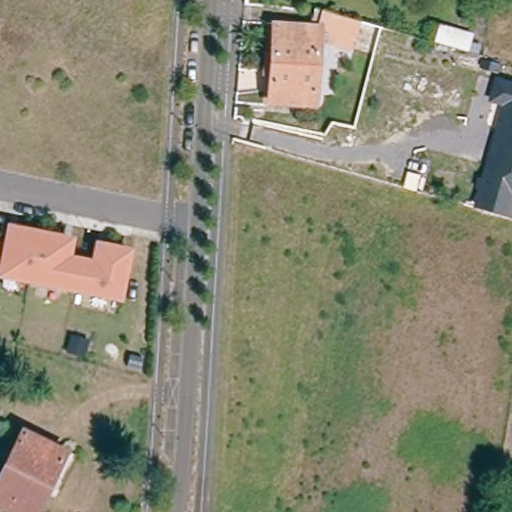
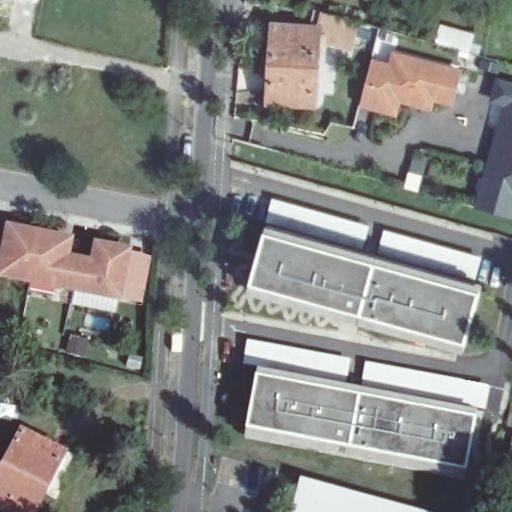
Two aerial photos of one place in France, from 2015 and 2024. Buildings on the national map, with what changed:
unchanged [(353,53),(345,51),(323,44),(323,41),(319,41),(315,98),(293,96),(292,108),(270,105),(275,30),(312,34),(317,14),(325,16),(361,26),(353,53)]
new [(440,23),(475,33),(468,54),(433,42),(440,23)]
new [(372,56),(387,60),(390,49),(461,69),(451,106),(435,101),(431,111),(401,104),(396,117),(358,106),(372,56)]
unchanged [(490,101),(496,77),(512,81),(512,218),(475,207),(503,105),(490,101)]
new [(412,154),(427,159),(417,192),(402,188),(412,154)]
demolished [(477,197),(471,196),(408,179),(415,156),(475,173),(483,174),(477,197)]
new [(370,227),(360,243),(270,216),(273,199),(370,227)]
new [(266,224),(482,283),(481,290),(265,231),(266,224)]
new [(380,244),(387,225),(475,259),(468,278),(380,244)]
new [(265,231),(481,290),(466,342),(250,284),(265,231)]
unchanged [(4,249),(6,235),(14,237),(15,232),(61,242),(60,247),(67,248),(65,262),(91,267),(94,254),(101,255),(102,250),(126,255),(116,305),(65,294),(0,281),(0,248),(4,249)]
new [(250,284),(466,342),(465,349),(249,290),(250,284)]
new [(258,370),(477,411),(475,418),(257,377),(258,370)]
new [(257,377),(475,418),(466,470),(247,429),(257,377)]
new [(247,429),(466,470),(465,477),(245,436),(247,429)]
unchanged [(21,431),(64,451),(34,512),(16,512),(0,504),(0,474),(21,431)]
new [(293,512),(302,479),(426,512),(295,512),(293,512)]

